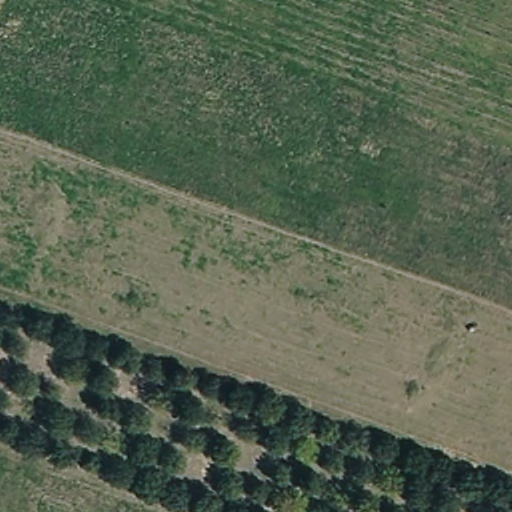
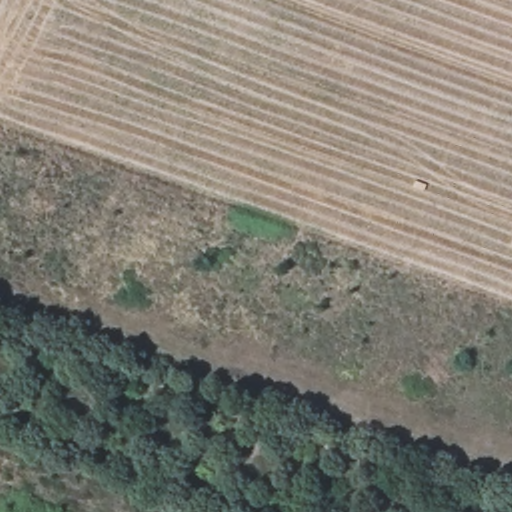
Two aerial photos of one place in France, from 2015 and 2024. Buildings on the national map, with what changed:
[]

